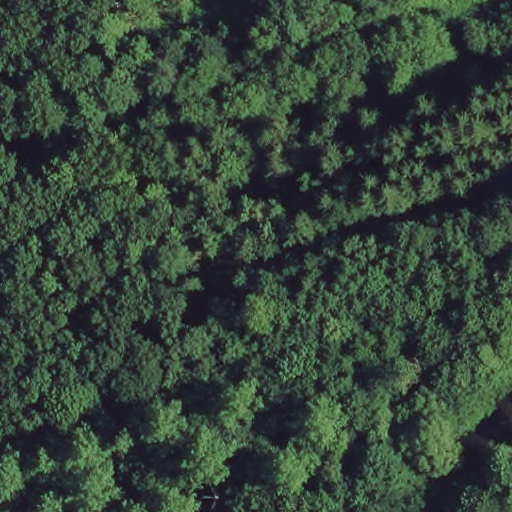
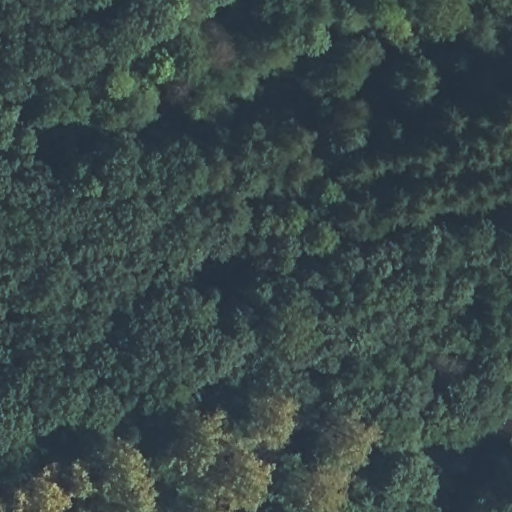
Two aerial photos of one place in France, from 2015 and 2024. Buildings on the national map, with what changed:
unchanged [(506,512),(512,504),(512,512),(506,512)]

